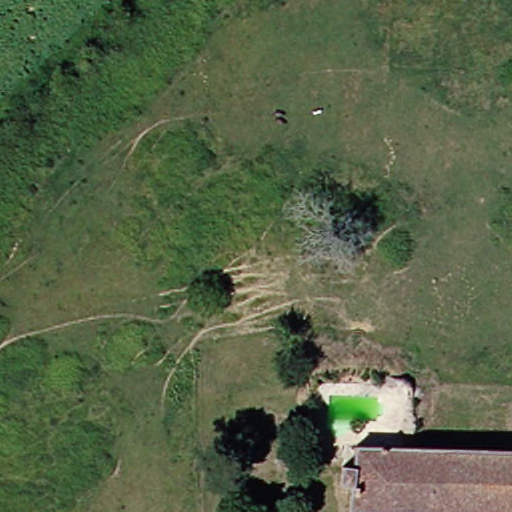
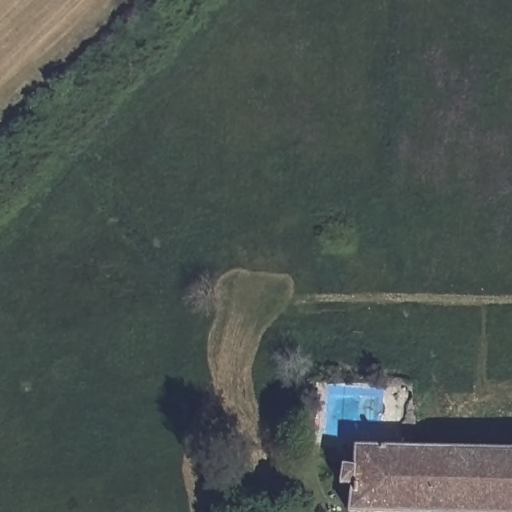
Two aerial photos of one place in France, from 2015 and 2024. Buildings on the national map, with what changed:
unchanged [(324,493),(346,493),(346,482),(336,482),(336,463),(347,463),(347,447),(512,449),(512,512),(324,512),(324,493)]

